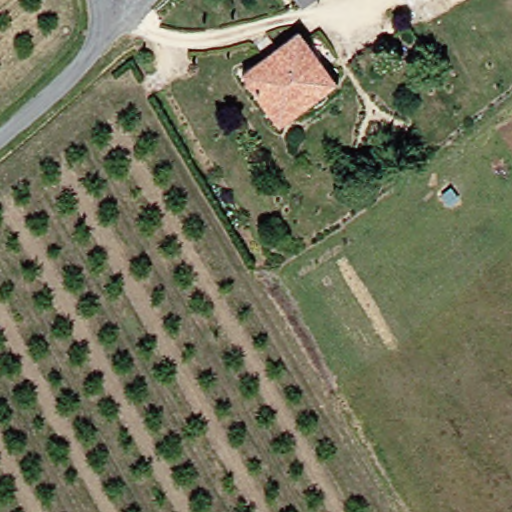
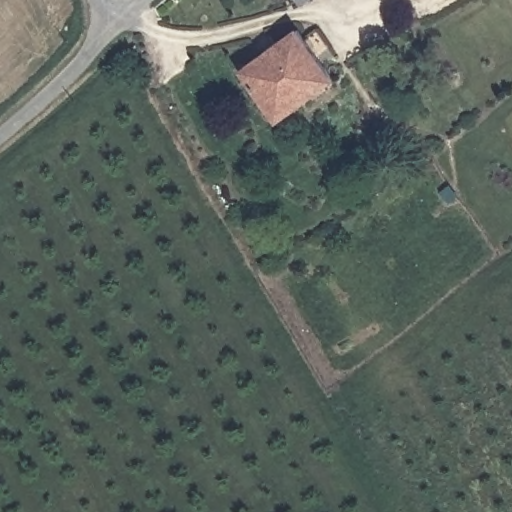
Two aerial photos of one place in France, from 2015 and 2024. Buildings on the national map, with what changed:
unchanged [(297,0),(320,0),(304,12),(297,0)]
unchanged [(295,26),(334,86),(277,123),(239,69),(295,26)]

